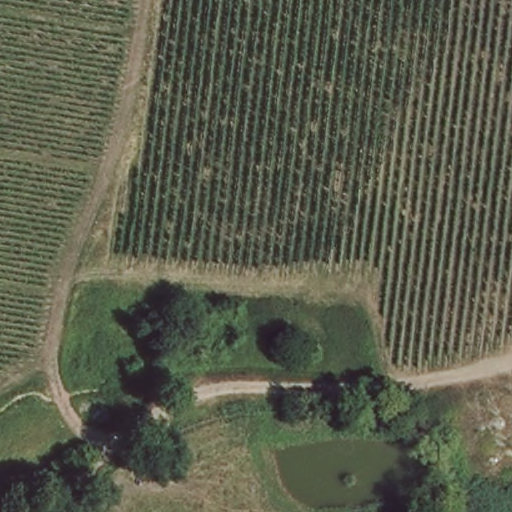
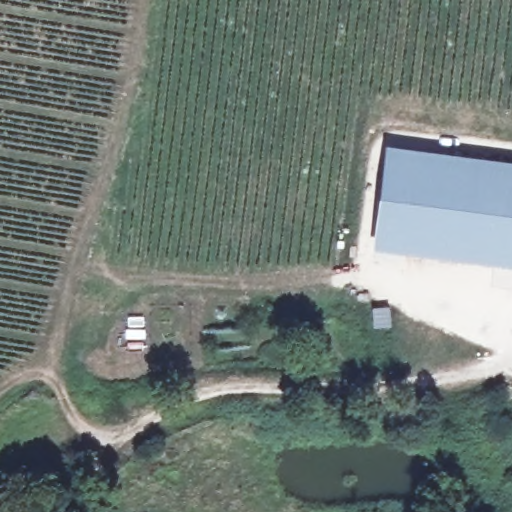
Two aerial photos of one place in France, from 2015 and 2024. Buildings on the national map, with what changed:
new [(385,145),(512,164),(512,269),(373,250),(385,145)]

